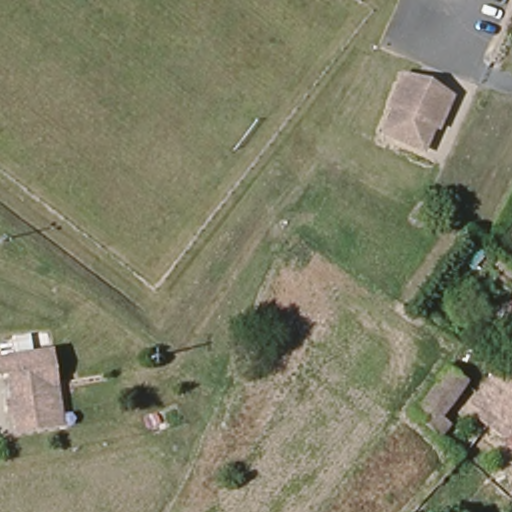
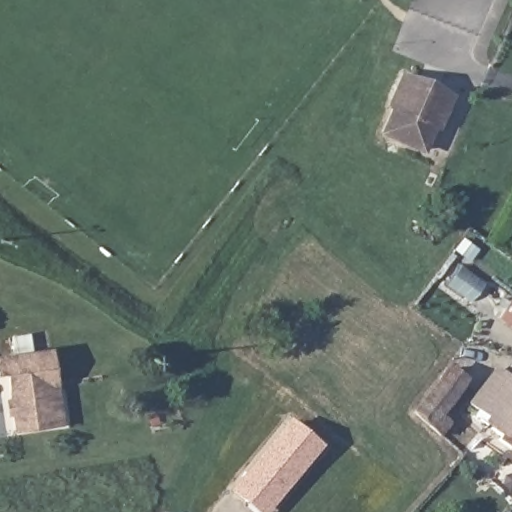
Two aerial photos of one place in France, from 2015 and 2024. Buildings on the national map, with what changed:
unchanged [(437,117),(433,115),(422,140),(382,123),(393,98),(388,95),(401,66),(450,86),(437,117)]
unchanged [(512,261),(507,257),(512,250),(512,261)]
unchanged [(6,403),(10,403),(5,376),(0,377),(0,360),(46,353),(52,385),(59,425),(52,426),(15,432),(13,417),(9,417),(6,403)]
unchanged [(413,412),(446,366),(463,381),(439,415),(447,423),(438,435),(413,412)]
unchanged [(501,435),(476,416),(480,411),(470,403),(496,370),(512,378),(512,450),(498,440),(501,435)]
new [(255,512),(230,492),(290,420),(322,447),(270,512),(255,512)]

